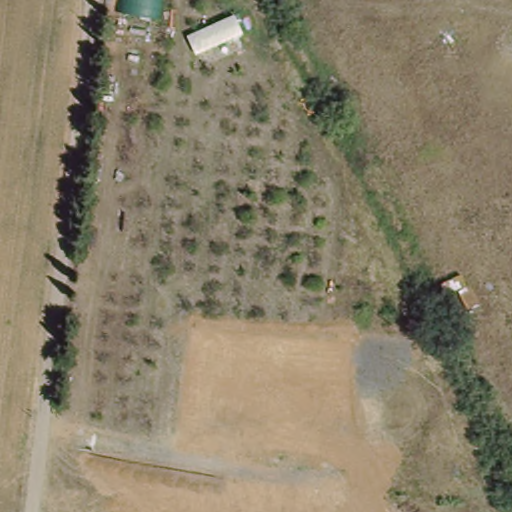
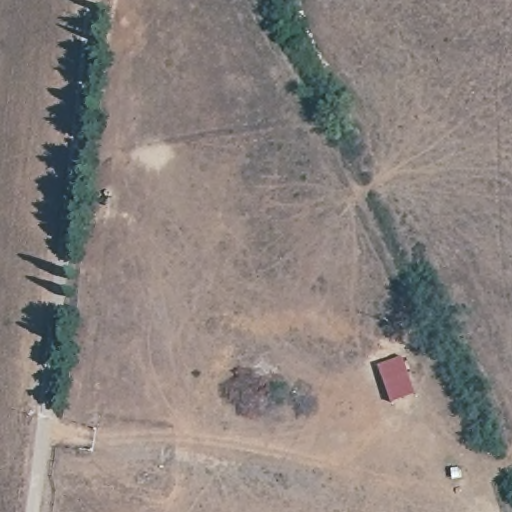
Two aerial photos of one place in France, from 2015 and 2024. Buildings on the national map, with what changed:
new [(418,394),(392,403),(377,365),(403,355),(418,394)]

